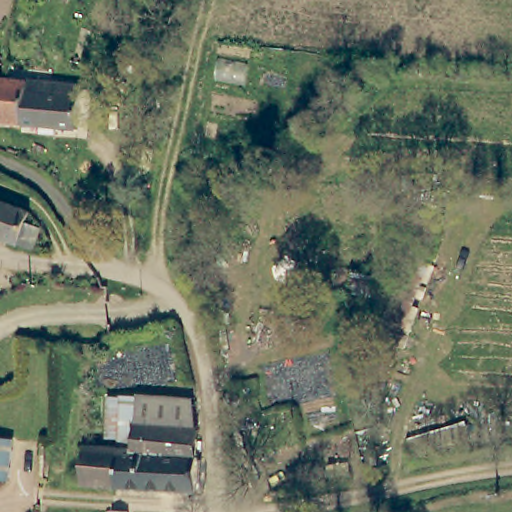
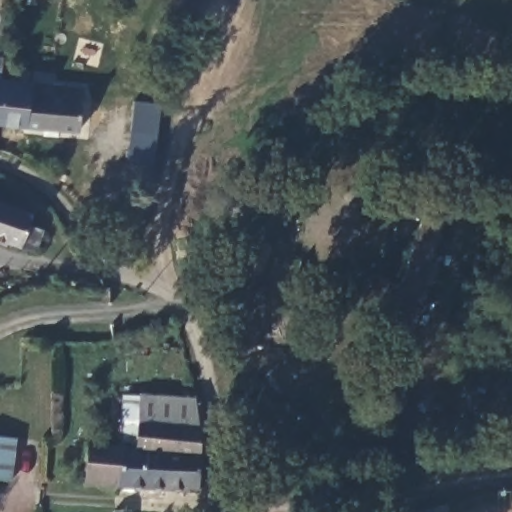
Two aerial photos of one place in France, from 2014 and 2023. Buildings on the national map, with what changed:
unchanged [(0,56),(6,57),(4,82),(5,82),(10,82),(30,85),(30,81),(84,87),(80,131),(0,122),(0,118),(0,56)]
new [(144,104),(164,108),(158,133),(152,162),(132,158),(139,129),(144,104)]
unchanged [(0,239),(0,198),(29,208),(13,245),(0,239)]
unchanged [(234,393),(235,393),(236,394),(238,395),(239,396),(240,397),(241,398),(241,400),(242,400),(242,401),(242,402),(242,404),(242,405),(241,406),(241,408),(240,409),(240,410),(239,410),(239,411),(238,411),(236,412),(235,413),(234,413),(232,413),(230,413),(229,412),(228,412),(226,411),(225,410),(224,409),(224,408),(223,407),(222,405),(222,404),(222,402),(222,401),(223,400),(224,398),(224,397),(225,395),(226,395),(227,395),(228,394),(230,393),(232,393),(234,393)]
unchanged [(134,449),(140,396),(190,401),(189,431),(201,435),(202,455),(199,490),(115,487),(116,447),(134,449)]
unchanged [(6,476),(0,476),(0,435),(6,435),(6,476)]
unchanged [(82,486),(83,445),(88,445),(116,447),(115,487),(82,486)]

